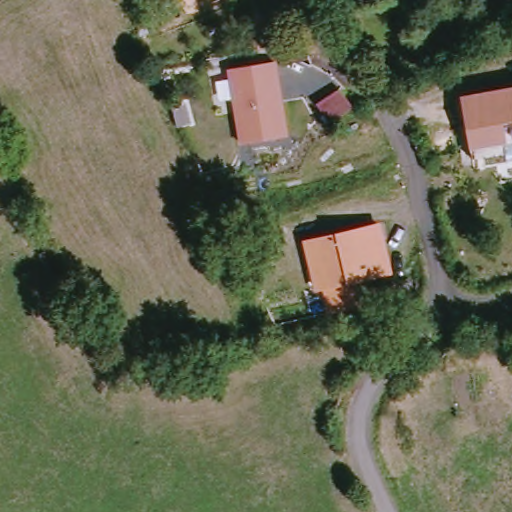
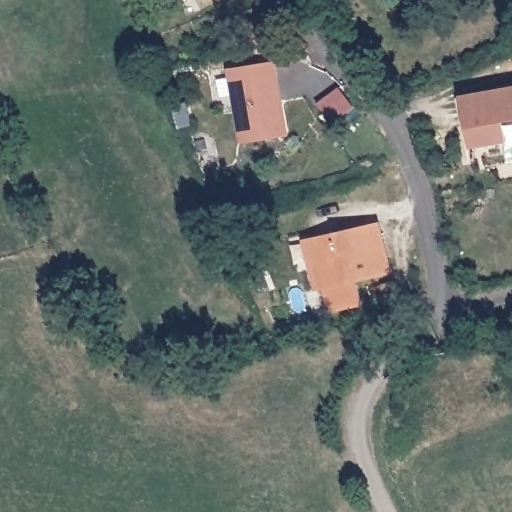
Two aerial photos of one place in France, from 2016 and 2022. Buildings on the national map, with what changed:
unchanged [(205,14),(198,0),(216,0),(218,6),(205,14)]
unchanged [(290,139),(241,148),(228,72),(278,64),(290,139)]
unchanged [(512,87),(512,117),(490,121),(494,140),(462,146),(453,96),(512,87)]
unchanged [(400,300),(328,317),(323,294),(315,295),(305,244),(382,224),(400,300)]

